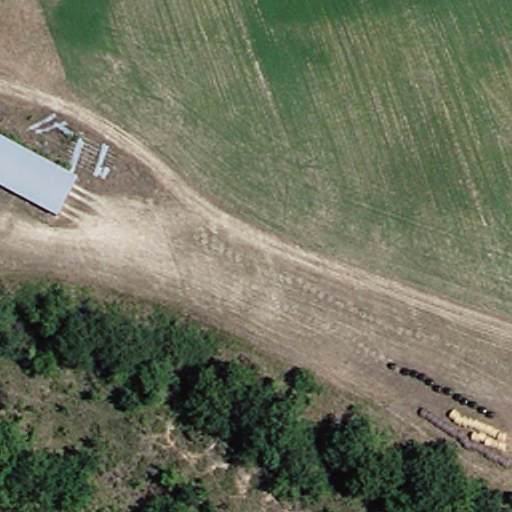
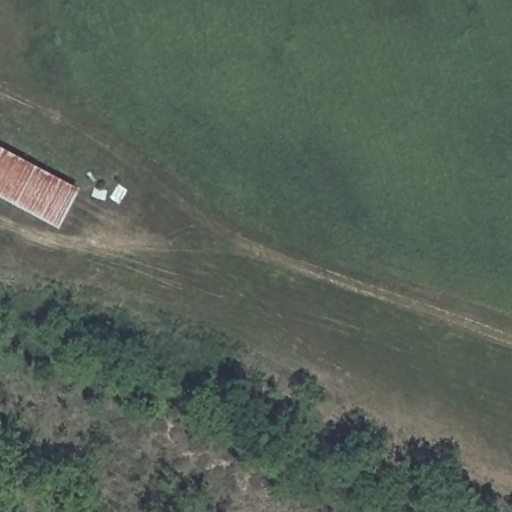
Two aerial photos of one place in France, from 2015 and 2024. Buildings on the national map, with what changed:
unchanged [(67,226),(0,190),(0,143),(86,190),(67,226)]

